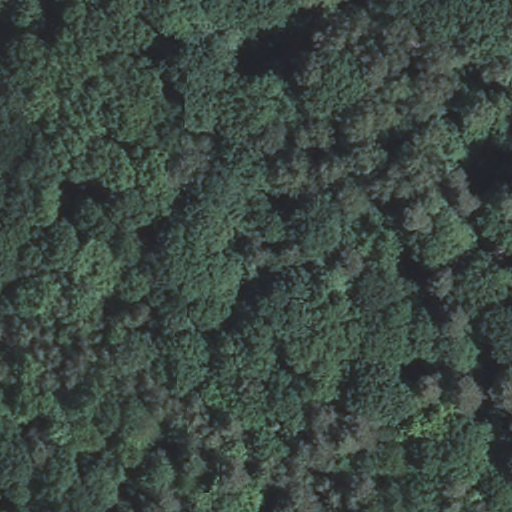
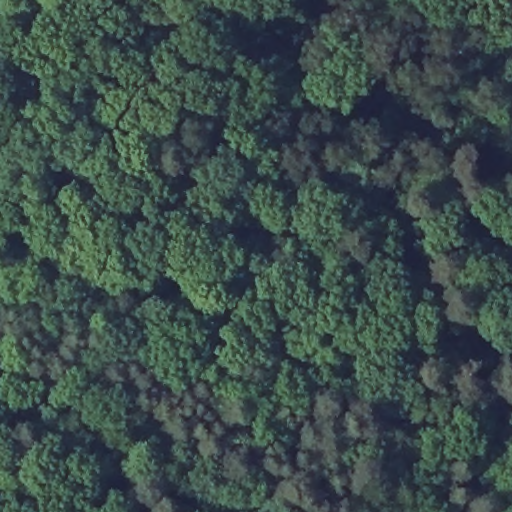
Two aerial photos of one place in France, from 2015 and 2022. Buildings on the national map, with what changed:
[]

